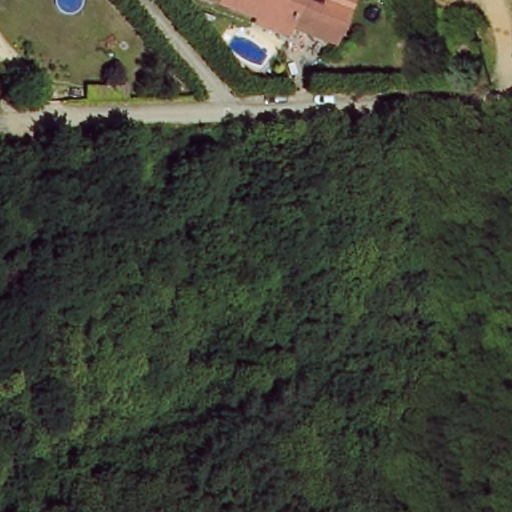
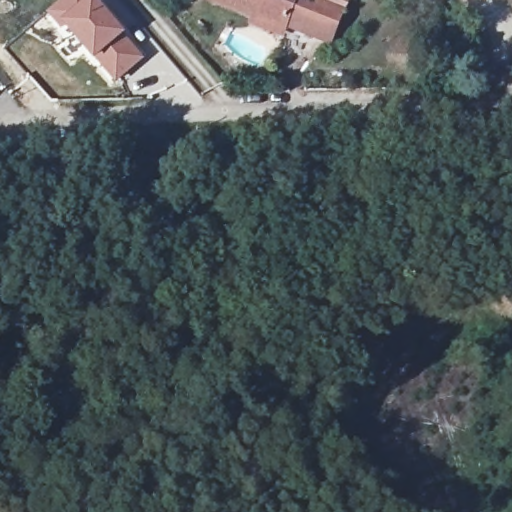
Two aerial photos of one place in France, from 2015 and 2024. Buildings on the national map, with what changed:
new [(97,0),(105,9),(144,58),(114,82),(66,31),(63,34),(45,12),(60,0),(97,0)]
unchanged [(225,0),(262,0),(285,28),(225,0)]
unchanged [(330,45),(286,25),(285,28),(262,0),(350,0),(340,23),(330,45)]
new [(82,86),(124,85),(125,101),(83,103),(82,86)]

